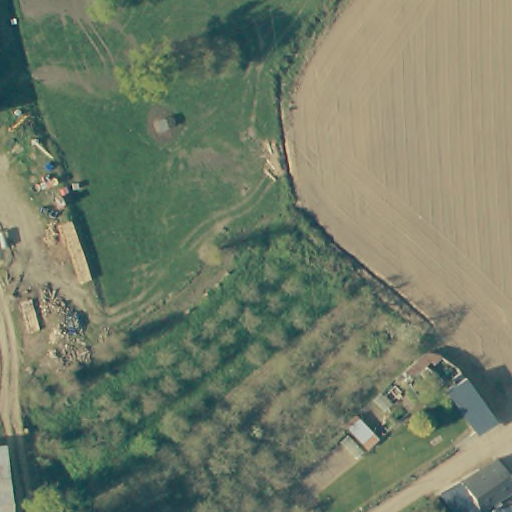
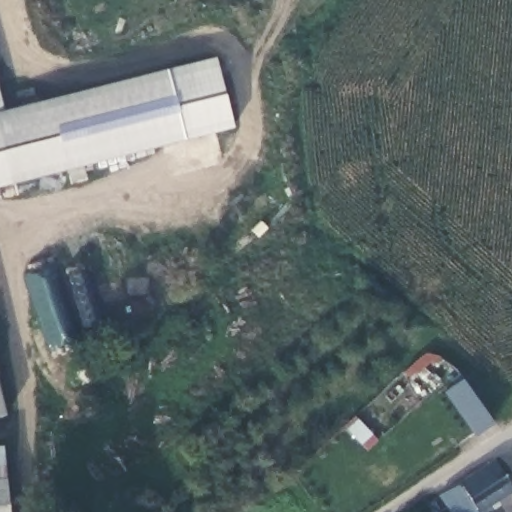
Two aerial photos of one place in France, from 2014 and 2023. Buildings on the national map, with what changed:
new [(237,126),(10,185),(0,149),(0,112),(216,56),(237,126)]
unchanged [(441,365),(415,386),(399,370),(427,350),(441,365)]
unchanged [(446,394),(466,379),(496,425),(475,436),(446,394)]
new [(0,415),(0,385),(7,413),(0,415)]
new [(10,512),(0,512),(0,446),(4,446),(10,512)]
unchanged [(490,459),(507,489),(472,511),(453,480),(490,459)]

